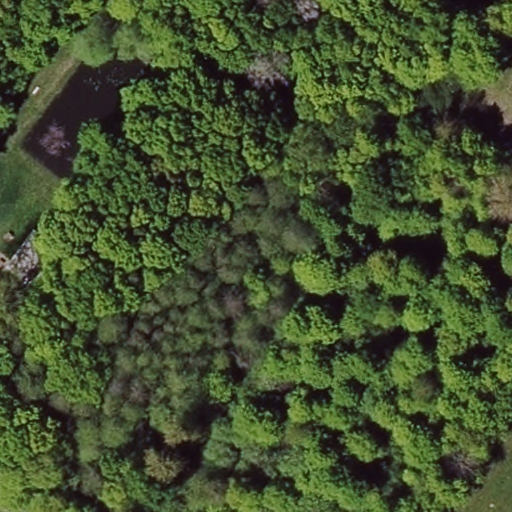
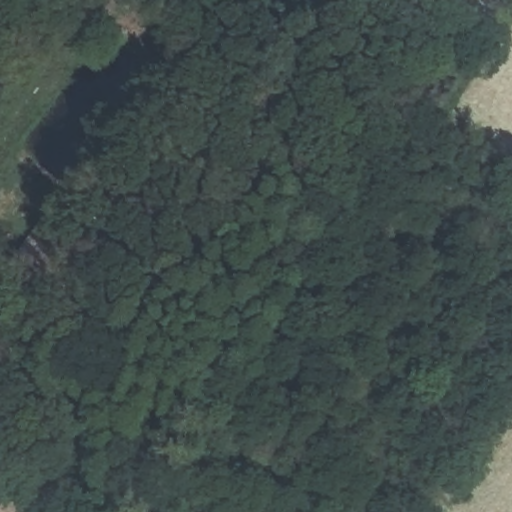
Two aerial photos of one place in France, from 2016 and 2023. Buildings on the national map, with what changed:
unchanged [(47,241),(62,251),(40,283),(25,274),(47,241)]

